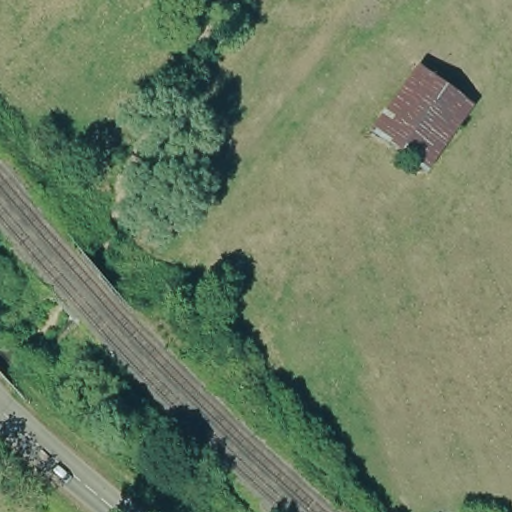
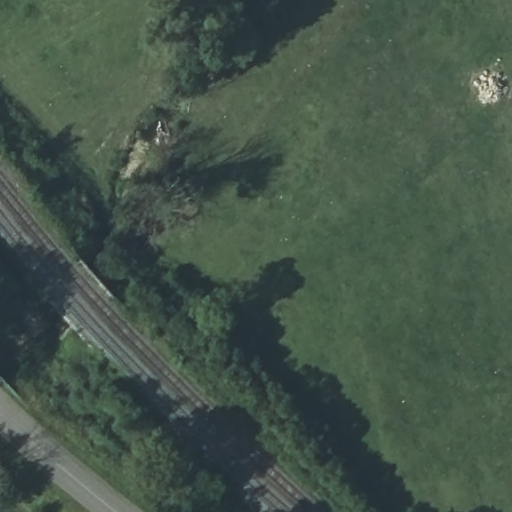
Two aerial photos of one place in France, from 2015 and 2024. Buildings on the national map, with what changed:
demolished [(473,109),(430,173),(372,132),(418,69),(473,109)]

